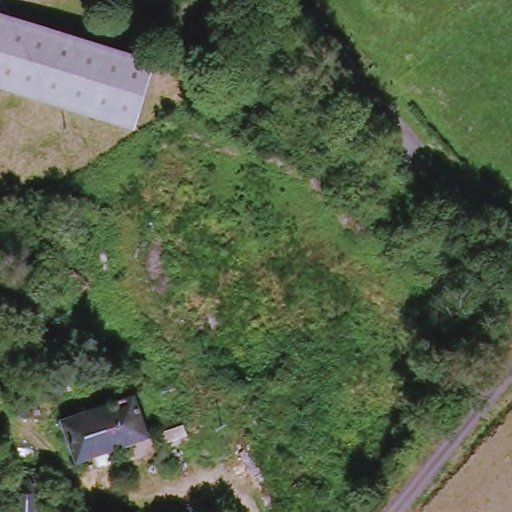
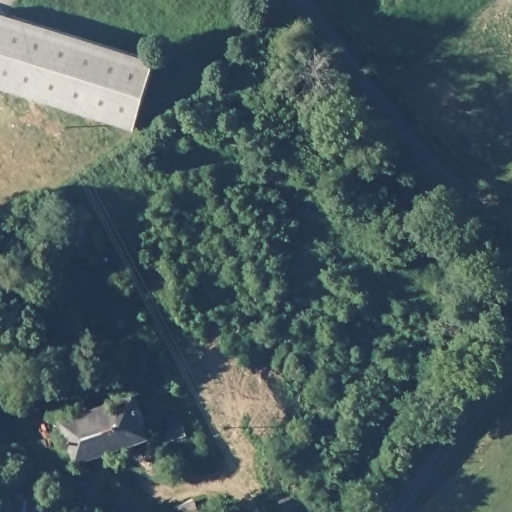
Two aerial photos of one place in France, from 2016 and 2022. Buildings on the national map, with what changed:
unchanged [(162,65),(141,132),(0,89),(0,16),(162,65)]
unchanged [(58,413),(132,388),(146,430),(73,456),(58,413)]
unchanged [(5,512),(10,460),(43,462),(38,512),(5,512)]

